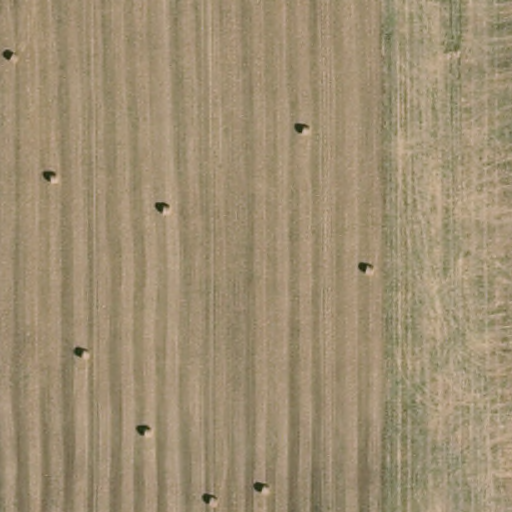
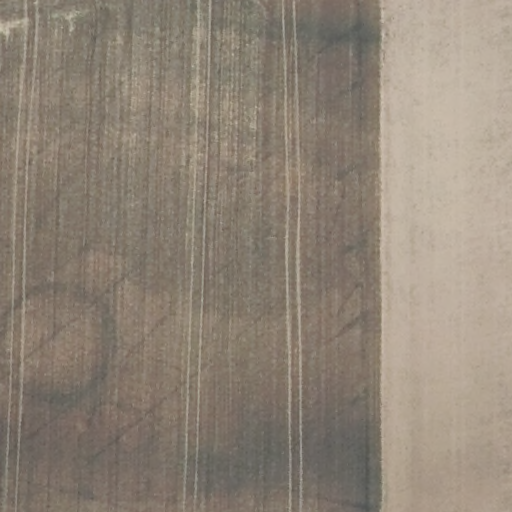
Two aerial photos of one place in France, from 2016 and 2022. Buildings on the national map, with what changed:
[]

